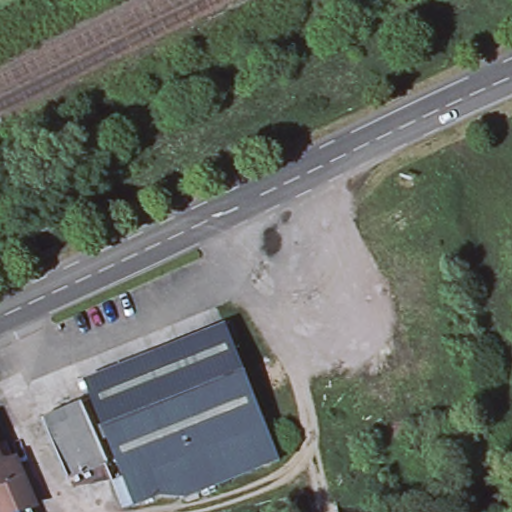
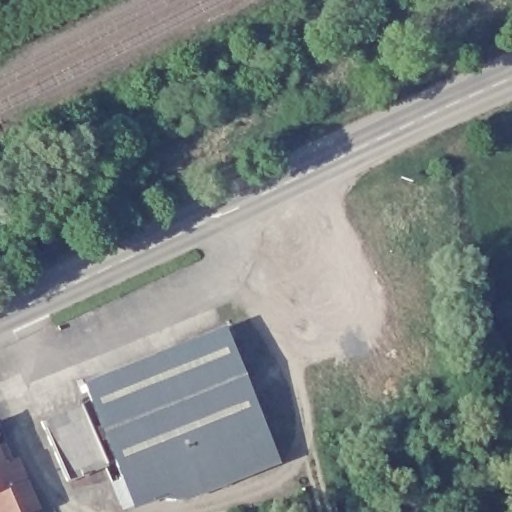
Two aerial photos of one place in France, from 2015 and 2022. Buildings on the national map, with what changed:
unchanged [(90,400),(82,381),(225,324),(282,460),(186,498),(168,496),(135,506),(115,460),(68,480),(40,419),(90,400)]
unchanged [(4,461),(18,455),(39,510),(36,512),(0,512),(0,451),(4,461)]

